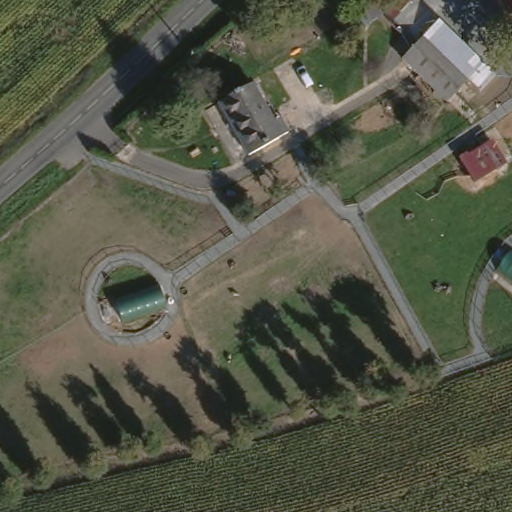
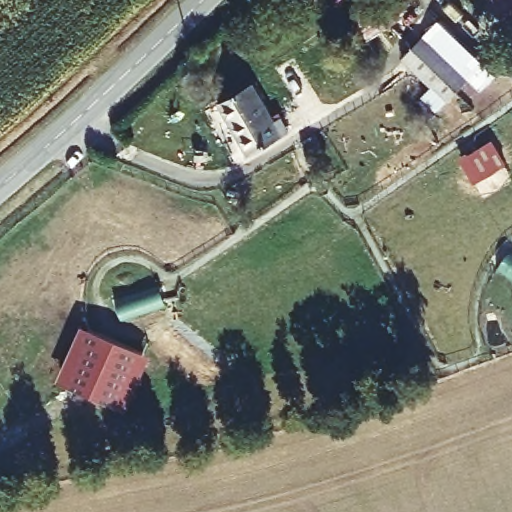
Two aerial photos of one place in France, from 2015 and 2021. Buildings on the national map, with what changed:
unchanged [(507,17),(497,0),(512,0),(512,15),(507,17)]
unchanged [(441,109),(393,62),(434,22),(480,63),(441,109)]
unchanged [(245,160),(215,107),(249,87),(270,125),(276,122),(284,136),(245,160)]
new [(61,380),(84,326),(151,355),(126,410),(61,380)]

